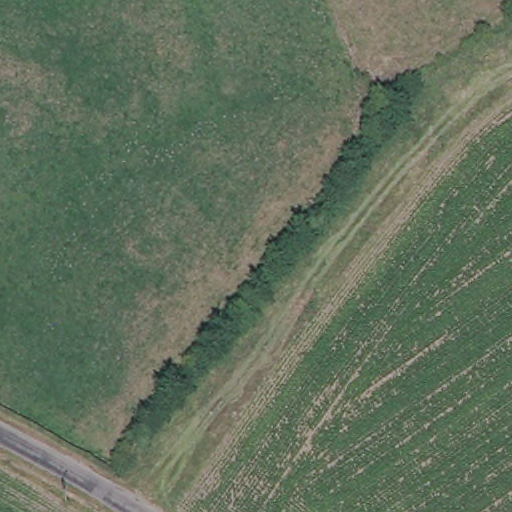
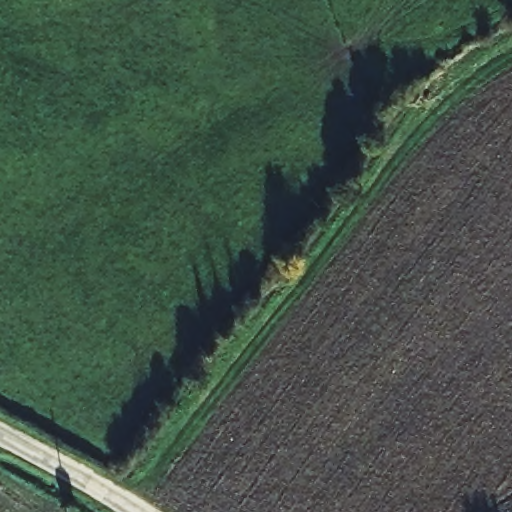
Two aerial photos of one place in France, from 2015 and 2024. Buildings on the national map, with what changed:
[]

